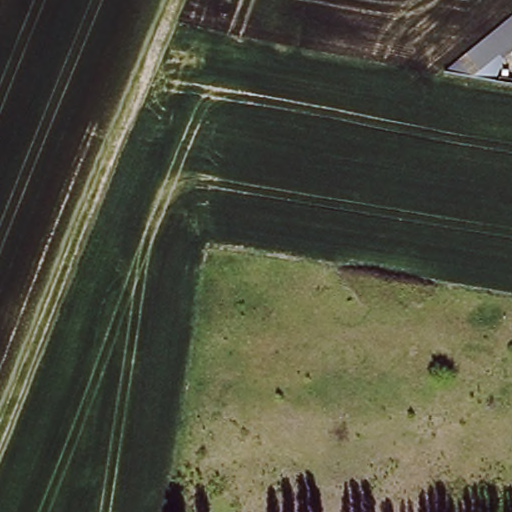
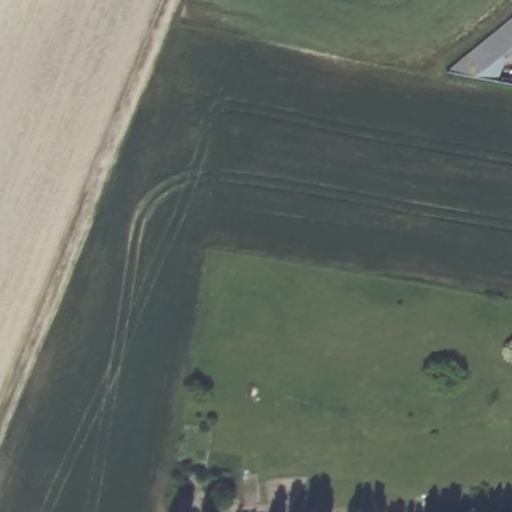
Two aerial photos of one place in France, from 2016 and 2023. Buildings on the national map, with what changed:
unchanged [(498,84),(444,73),(512,19),(512,53),(503,60),(498,84)]

